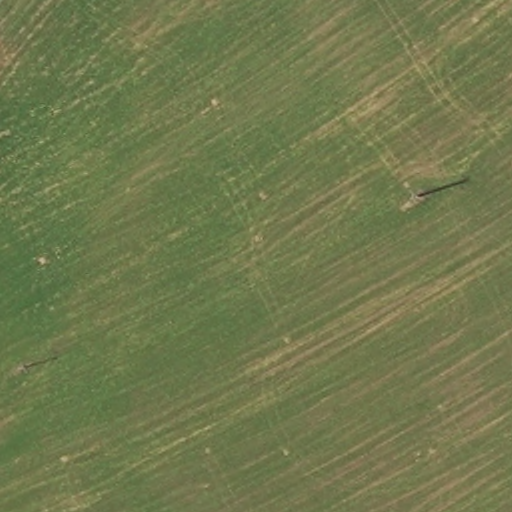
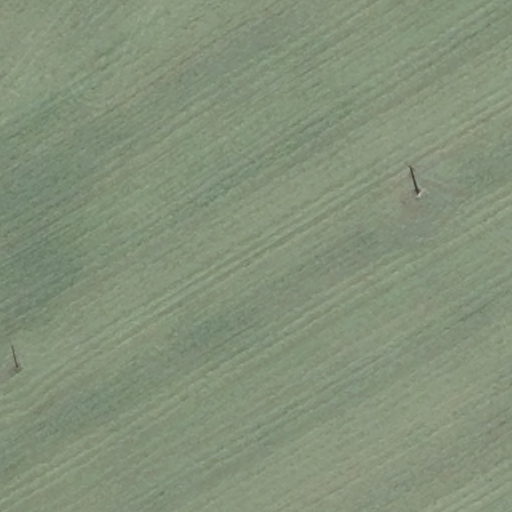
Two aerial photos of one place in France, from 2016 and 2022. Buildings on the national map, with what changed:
[]

